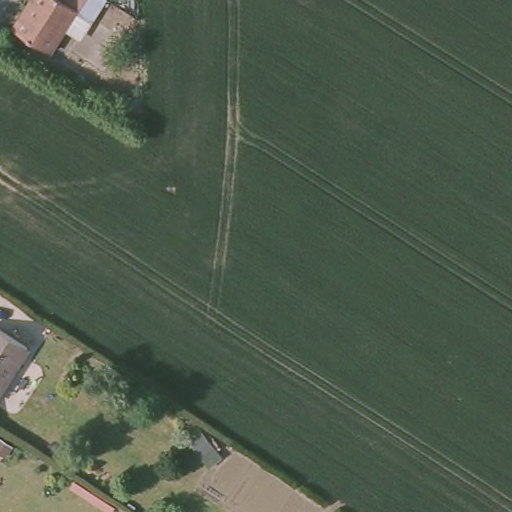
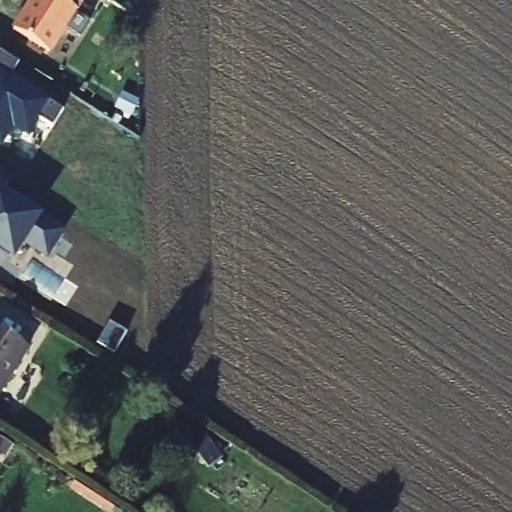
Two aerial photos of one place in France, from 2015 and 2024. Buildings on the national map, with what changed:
unchanged [(49,55),(10,31),(29,0),(104,0),(89,26),(79,42),(62,33),(49,55)]
new [(17,66),(9,79),(62,113),(51,131),(40,124),(28,141),(12,131),(0,150),(0,149),(0,55),(17,66)]
new [(11,185),(6,192),(44,217),(42,220),(65,233),(47,263),(22,250),(14,264),(0,255),(0,178),(11,185)]
unchanged [(0,397),(0,330),(31,350),(0,397)]

